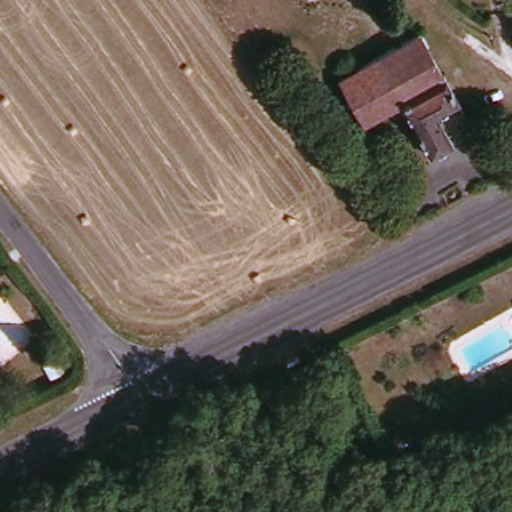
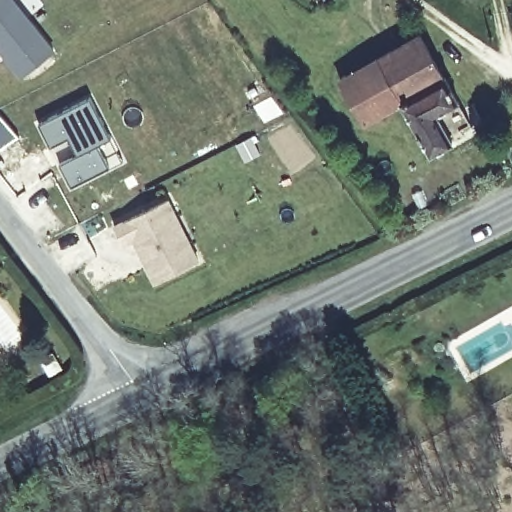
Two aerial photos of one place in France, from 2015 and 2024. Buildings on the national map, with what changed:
new [(10,0),(54,53),(23,79),(0,51),(0,0),(10,0)]
unchanged [(365,128),(338,84),(415,35),(418,42),(381,110),(372,126),(369,131),(365,128)]
unchanged [(467,124),(444,137),(448,142),(424,156),(393,104),(381,110),(418,42),(419,41),(420,40),(420,39),(467,124)]
new [(112,166),(74,186),(62,162),(79,154),(71,137),(53,146),(40,123),(92,96),(113,136),(125,159),(112,166)]
new [(134,237),(124,242),(114,225),(167,197),(198,258),(156,281),(147,262),(141,252),(134,237)]

